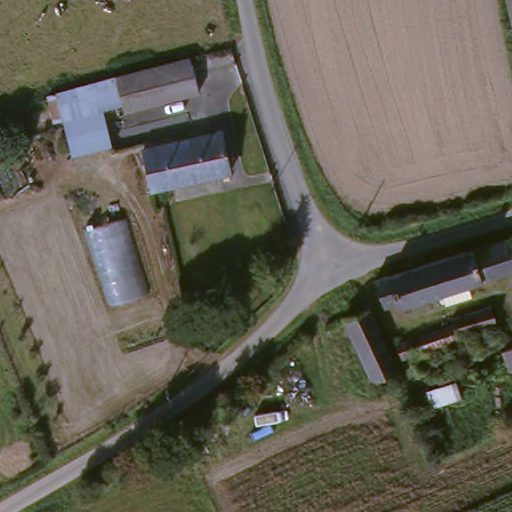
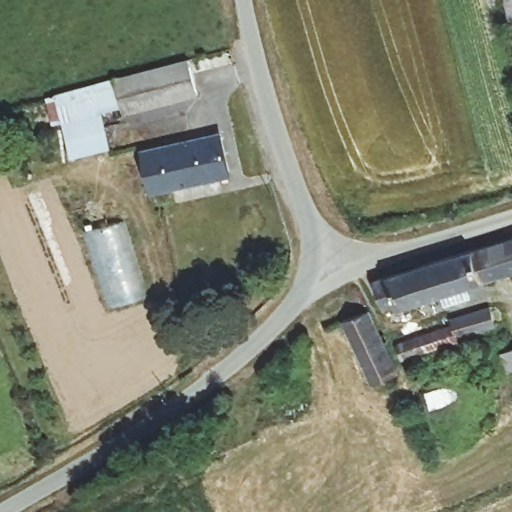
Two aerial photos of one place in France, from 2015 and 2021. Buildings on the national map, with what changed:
unchanged [(512,0),(512,34),(505,0),(512,0)]
unchanged [(193,94),(118,113),(117,105),(109,77),(183,59),(193,94)]
unchanged [(106,146),(66,156),(58,121),(48,124),(42,97),(51,95),(51,94),(64,90),(109,77),(117,105),(97,110),(106,146)]
unchanged [(150,195),(141,155),(221,137),(229,179),(150,195)]
unchanged [(143,302),(104,312),(83,229),(123,220),(143,302)]
unchanged [(436,294),(393,307),(391,302),(378,307),(368,281),(512,235),(512,270),(461,286),(465,297),(439,305),(436,294)]
unchanged [(391,345),(416,335),(448,325),(445,319),(485,307),(491,325),(452,336),(453,340),(419,351),(396,360),(391,345)]
unchanged [(363,310),(393,374),(366,383),(337,320),(363,310)]
unchanged [(501,356),(512,353),(512,376),(508,377),(501,356)]

